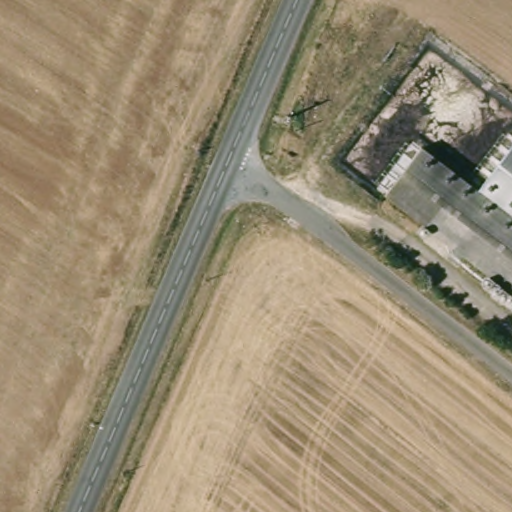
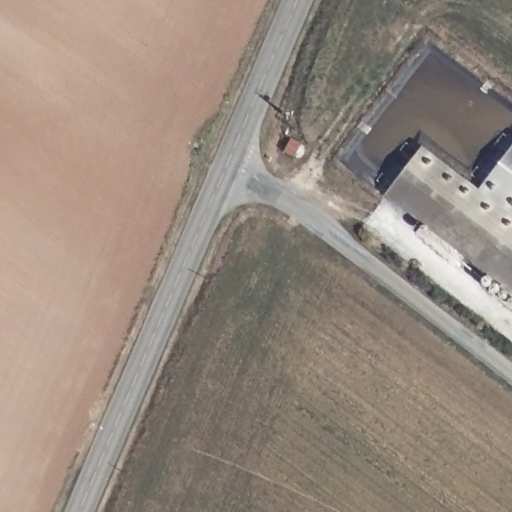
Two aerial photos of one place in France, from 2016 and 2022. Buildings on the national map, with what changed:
unchanged [(512,144),(512,212),(480,187),(512,144)]
unchanged [(425,145),(480,187),(512,212),(512,290),(389,194),(425,145)]

